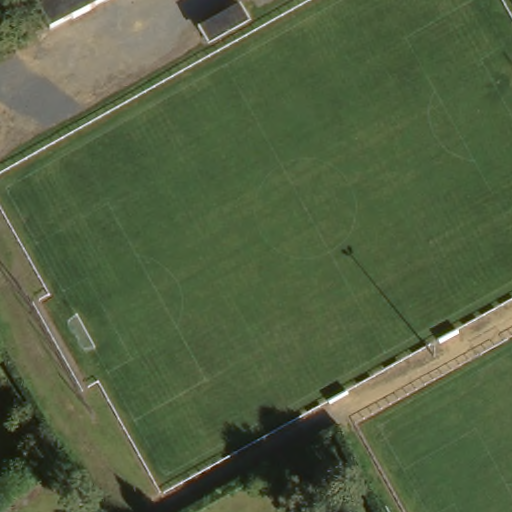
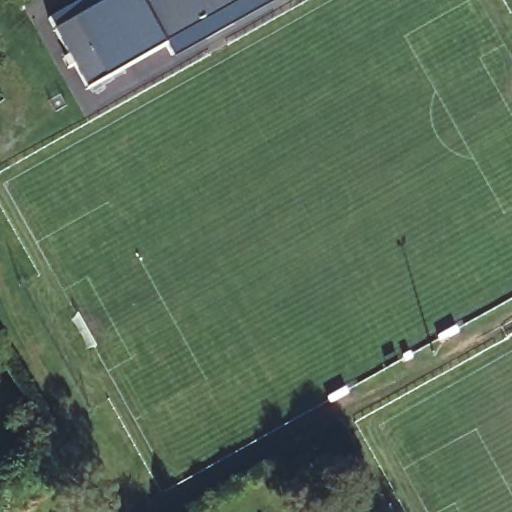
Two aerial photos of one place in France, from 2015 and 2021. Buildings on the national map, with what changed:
demolished [(54,29),(39,0),(112,0),(54,29)]
new [(270,5),(173,59),(166,46),(87,90),(55,31),(49,19),(83,0),(146,0),(141,5),(143,7),(156,0),(267,0),(270,5)]

